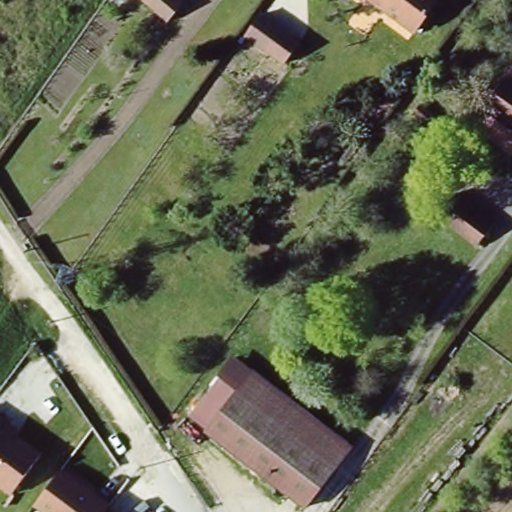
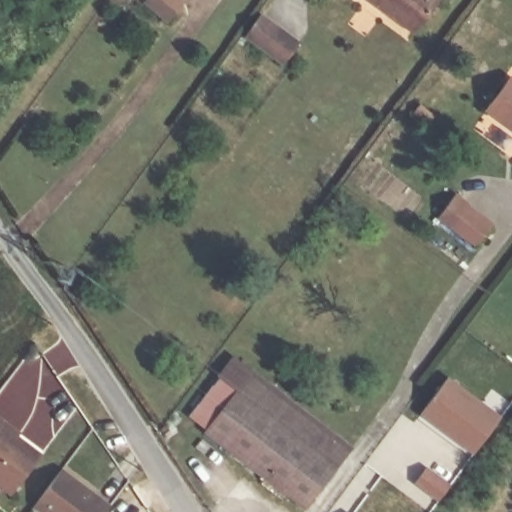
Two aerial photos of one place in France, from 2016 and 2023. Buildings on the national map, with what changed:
unchanged [(167,20),(145,0),(182,0),(184,1),(167,20)]
unchanged [(437,0),(436,1),(412,33),(369,0),(437,0)]
unchanged [(260,10),(297,37),(279,66),(242,40),(260,10)]
unchanged [(485,111),(508,80),(512,83),(512,131),(485,111)]
unchanged [(460,195),(474,205),(471,209),(495,226),(481,245),(443,217),(460,195)]
unchanged [(282,489),(276,485),(200,425),(190,417),(217,381),(222,376),(236,357),(245,364),(321,424),(328,430),(348,442),(305,507),(282,489)]
new [(477,453),(422,415),(451,377),(503,416),(477,453)]
unchanged [(19,435),(43,452),(12,492),(0,484),(0,414),(22,430),(19,435)]
unchanged [(34,505),(63,470),(108,506),(104,512),(44,512),(34,505)]

